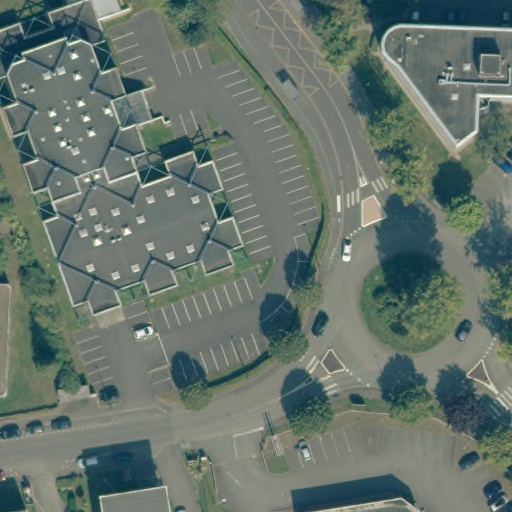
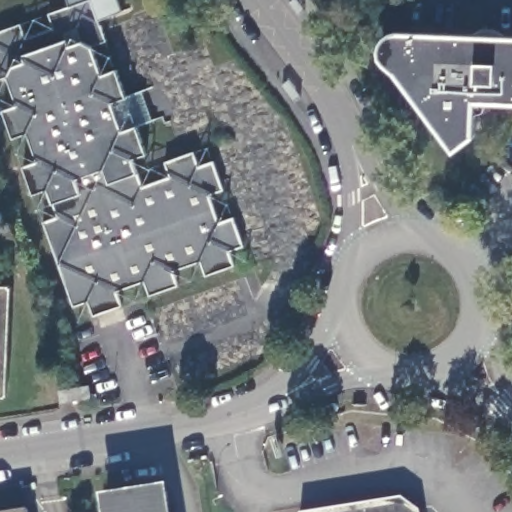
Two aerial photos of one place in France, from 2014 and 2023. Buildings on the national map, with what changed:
unchanged [(125,2),(100,12),(109,34),(93,40),(102,66),(118,61),(127,86),(140,83),(151,113),(139,117),(150,145),(133,151),(143,178),(168,170),(162,154),(189,145),(194,159),(210,155),(220,182),(205,188),(215,216),(231,211),(242,239),(226,245),(232,262),(204,272),(197,258),(168,268),(173,283),(146,292),(141,280),(110,291),(115,304),(91,312),(85,300),(71,304),(40,220),(54,214),(43,187),(30,191),(21,164),(33,157),(24,132),(10,134),(0,108),(0,105),(12,100),(2,74),(0,76),(0,27),(11,23),(17,38),(45,27),(41,12),(67,2),(67,0),(124,0),(125,2)]
unchanged [(482,106),(478,108),(469,108),(469,131),(446,147),(380,54),(376,37),(378,32),(381,28),(386,26),(391,26),(512,31),(512,99),(482,97),(482,106)]
unchanged [(2,392),(0,392),(0,284),(6,284),(2,392)]
unchanged [(64,407),(62,393),(79,390),(91,389),(93,402),(64,407)]
unchanged [(109,512),(107,499),(165,491),(168,512),(109,512)]
unchanged [(392,491),(395,508),(400,512),(299,512),(298,507),(392,491)]
unchanged [(17,512),(24,511),(24,512),(17,512)]

